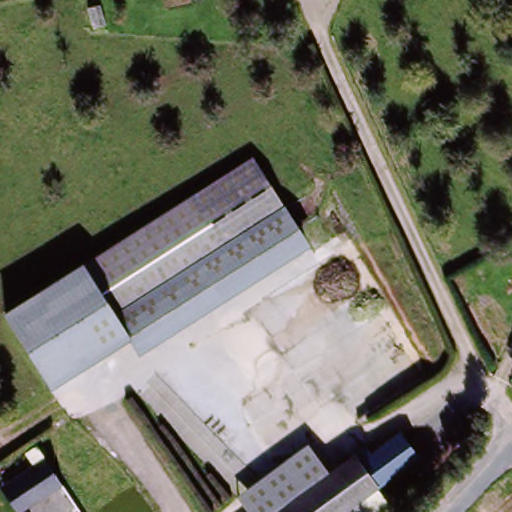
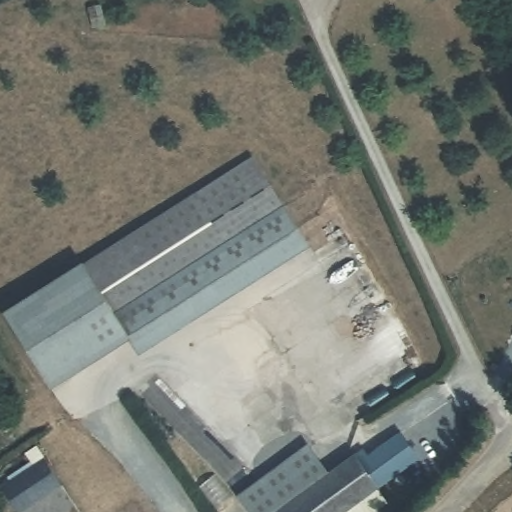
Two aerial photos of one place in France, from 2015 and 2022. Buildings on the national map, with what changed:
unchanged [(305,245),(137,354),(128,345),(50,389),(7,320),(247,159),(305,245)]
unchanged [(345,466),(343,464),(370,443),(376,452),(404,431),(420,455),(392,476),(346,512),(284,512),(329,478),(345,466)]
unchanged [(307,449),(329,478),(284,512),(252,512),(242,498),(307,449)]
unchanged [(52,488),(25,507),(20,512),(13,512),(0,494),(0,492),(9,485),(40,461),(52,488)]

